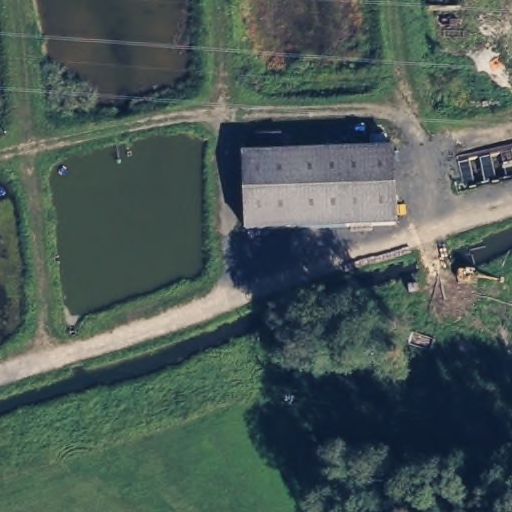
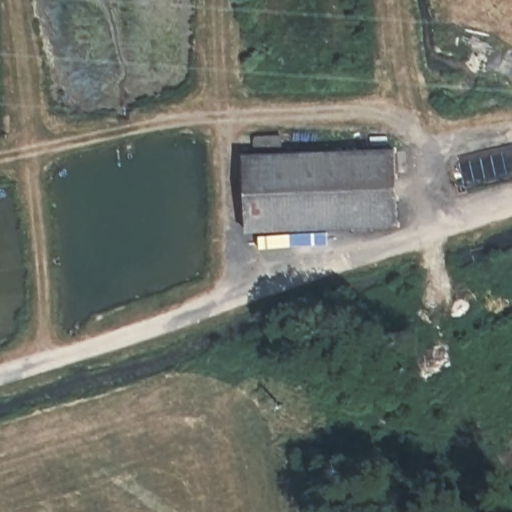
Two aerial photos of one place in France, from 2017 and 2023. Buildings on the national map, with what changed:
unchanged [(394,141),(397,219),(249,228),(244,150),(394,141)]

